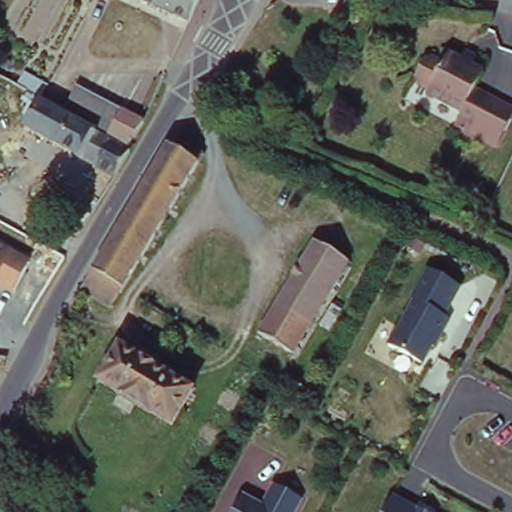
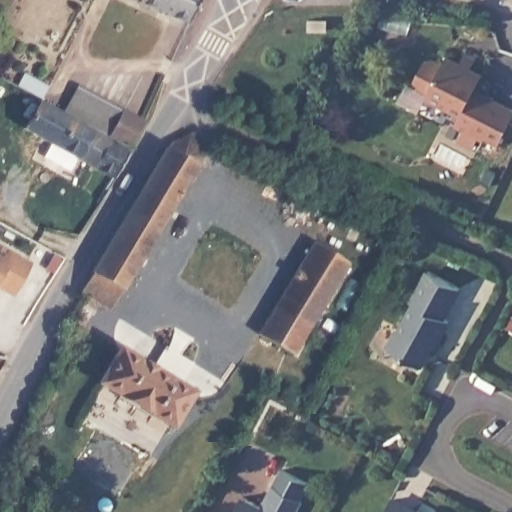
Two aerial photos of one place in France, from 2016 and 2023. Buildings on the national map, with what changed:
unchanged [(114,0),(201,0),(187,32),(114,0)]
unchanged [(460,44),(471,50),(467,58),(479,64),(471,80),(484,87),(511,101),(493,137),(467,123),(451,116),(457,103),(423,86),(424,82),(412,76),(409,69),(416,54),(423,52),(436,58),(442,46),(455,53),(460,44)]
unchanged [(66,117),(80,92),(123,116),(142,128),(127,149),(109,140),(66,117)]
unchanged [(128,156),(114,182),(113,182),(22,131),(37,105),(128,156)]
unchanged [(169,143),(190,133),(203,154),(108,309),(81,293),(79,290),(169,143)]
unchanged [(350,267),(294,355),(259,336),(308,244),(350,267)]
unchanged [(13,253),(28,262),(17,287),(0,278),(0,246),(13,253)]
unchanged [(426,273),(457,289),(441,322),(450,327),(425,365),(388,345),(426,273)]
unchanged [(188,386),(167,421),(92,378),(113,342),(188,386)]
unchanged [(273,482),(300,502),(294,512),(234,512),(241,500),(260,509),(273,482)]
unchanged [(387,512),(395,497),(425,512),(387,512)]

